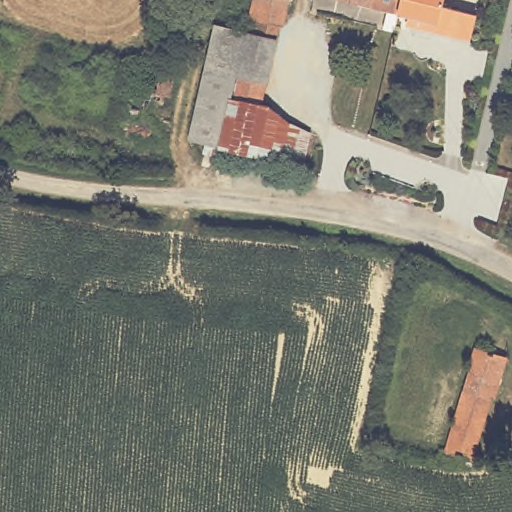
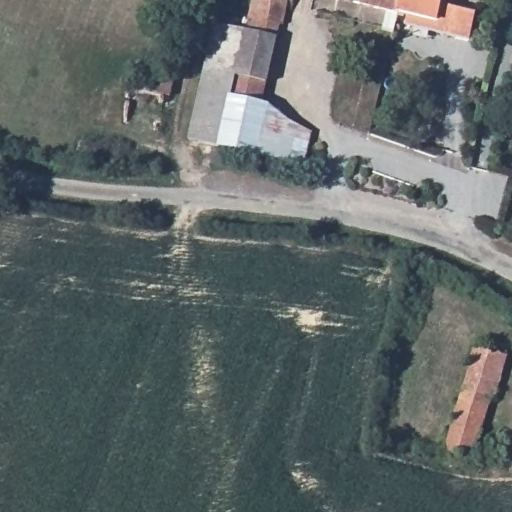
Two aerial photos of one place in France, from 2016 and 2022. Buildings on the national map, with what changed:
unchanged [(277,31),(244,24),(249,0),(286,0),(279,32),(277,31)]
unchanged [(393,20),(391,35),(378,33),(381,16),(307,0),(406,0),(400,21),(393,20)]
unchanged [(449,46),(430,41),(405,34),(407,23),(400,21),(406,0),(439,0),(436,11),(456,16),(471,20),(464,50),(449,46)]
unchanged [(241,36),(244,24),(277,31),(259,107),(267,109),(264,124),(223,115),(215,151),(184,144),(210,29),(241,36)]
unchanged [(169,121),(178,121),(177,133),(161,132),(161,126),(122,124),(129,96),(139,96),(143,74),(178,79),(179,97),(171,97),(169,121)]
unchanged [(223,115),(264,124),(285,129),(276,165),(215,151),(223,115)]
unchanged [(439,444),(450,448),(473,362),(469,361),(473,344),(508,353),(497,396),(492,394),(476,457),(464,453),(460,466),(436,459),(439,444)]

